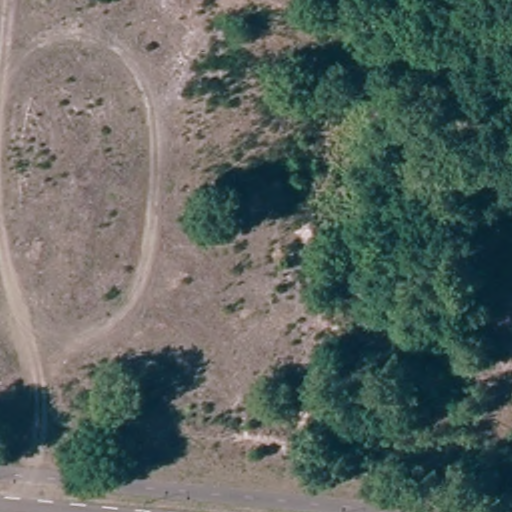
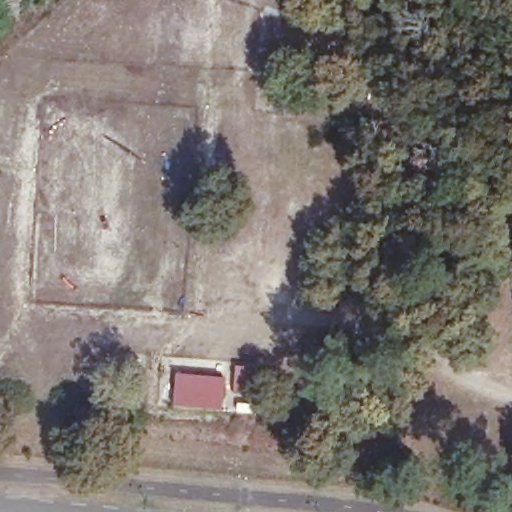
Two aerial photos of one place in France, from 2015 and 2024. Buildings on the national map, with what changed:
new [(225,378),(222,408),(175,405),(177,375),(225,378)]

